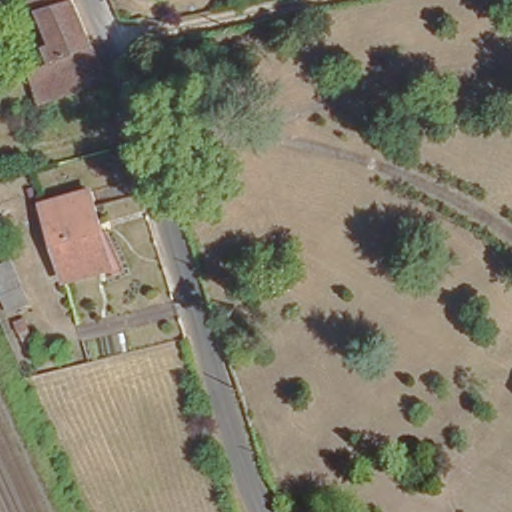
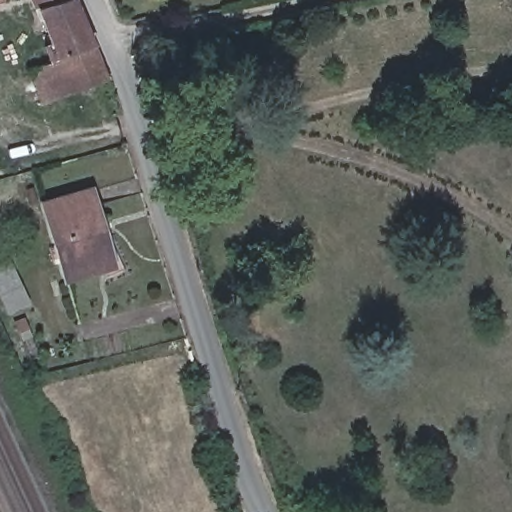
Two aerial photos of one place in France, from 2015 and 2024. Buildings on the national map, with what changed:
unchanged [(39,100),(29,70),(53,59),(48,44),(54,41),(40,0),(75,0),(93,44),(66,57),(78,87),(39,100)]
unchanged [(66,57),(93,44),(107,77),(78,87),(66,57)]
unchanged [(98,213),(91,216),(107,256),(67,270),(44,202),(90,186),(98,213)]
unchanged [(30,301),(7,310),(0,293),(0,259),(9,255),(30,301)]

